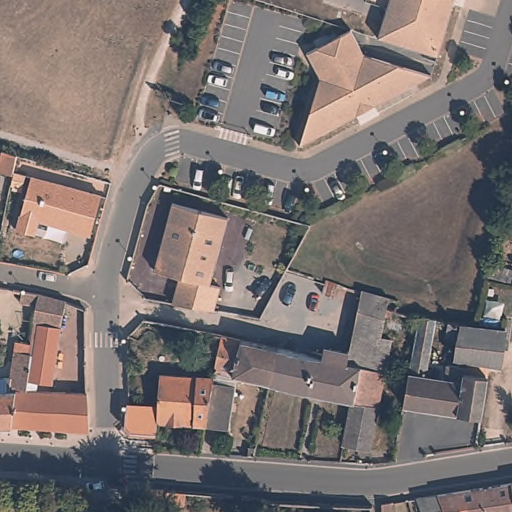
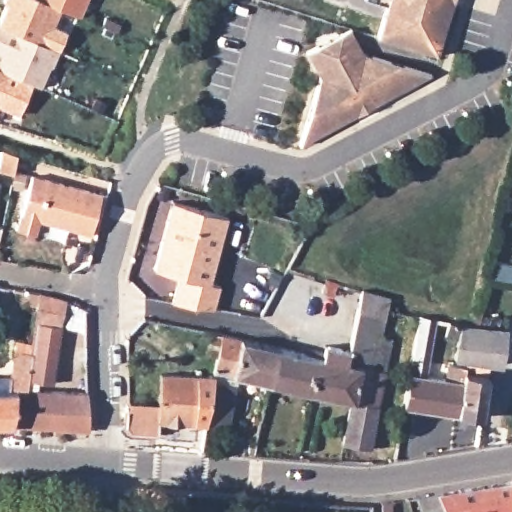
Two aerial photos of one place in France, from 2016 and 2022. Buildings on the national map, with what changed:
new [(59,8),(53,26),(66,32),(58,53),(56,52),(40,88),(31,85),(18,116),(0,108),(0,14),(4,4),(1,2),(2,0),(39,0),(59,8)]
unchanged [(78,16),(39,0),(86,0),(78,16)]
unchanged [(438,55),(377,37),(389,0),(455,0),(438,55)]
unchanged [(350,29),(364,55),(432,75),(375,105),(299,146),(320,78),(306,53),(350,29)]
unchanged [(0,168),(0,163),(3,148),(19,153),(15,172),(0,168)]
unchanged [(101,196),(90,237),(39,223),(35,235),(15,230),(29,176),(101,196)]
unchanged [(154,270),(162,240),(172,203),(184,207),(228,218),(210,284),(220,287),(214,311),(172,304),(179,276),(154,270)]
unchanged [(322,295),(325,280),(337,284),(334,299),(322,295)]
unchanged [(488,281),(512,284),(512,287),(510,299),(484,294),(488,281)]
unchanged [(9,393),(14,353),(30,355),(34,324),(35,313),(36,308),(14,304),(16,292),(38,295),(55,300),(54,326),(53,345),(48,345),(44,372),(28,370),(25,393),(17,393),(11,427),(0,427),(0,393),(9,393)]
unchanged [(330,350),(350,353),(362,292),(388,300),(386,311),(393,312),(392,321),(385,320),(381,340),(367,337),(354,405),(350,404),(311,396),(271,387),(278,351),(328,362),(330,350)]
unchanged [(403,373),(413,316),(429,319),(431,306),(447,309),(445,322),(454,323),(470,326),(499,330),(500,320),(505,321),(502,341),(497,340),(494,366),(484,365),(459,361),(450,360),(452,337),(441,335),(443,321),(432,319),(422,376),(403,373)]
unchanged [(207,357),(211,342),(212,335),(220,337),(278,351),(271,387),(236,379),(227,430),(205,427),(213,378),(217,359),(207,357)]
unchanged [(343,448),(350,404),(354,405),(367,337),(381,340),(390,341),(370,452),(343,448)]
unchanged [(477,417),(397,405),(402,378),(403,373),(422,376),(439,379),(441,365),(458,367),(459,361),(484,365),(477,417)]
unchanged [(158,425),(158,437),(131,435),(125,427),(126,405),(129,405),(158,406),(159,377),(213,378),(205,427),(158,425)]
unchanged [(11,427),(17,393),(25,393),(51,392),(50,431),(11,427)]
unchanged [(89,434),(50,431),(51,392),(72,392),(87,392),(89,434)]
unchanged [(395,447),(397,433),(398,433),(405,434),(403,448),(395,447)]
unchanged [(247,458),(249,449),(256,450),(254,459),(247,458)]
unchanged [(438,497),(472,492),(512,486),(512,512),(422,512),(417,501),(438,497)]
unchanged [(133,505),(135,490),(187,493),(186,509),(133,505)]
unchanged [(393,504),(393,512),(383,512),(382,506),(393,504)]

